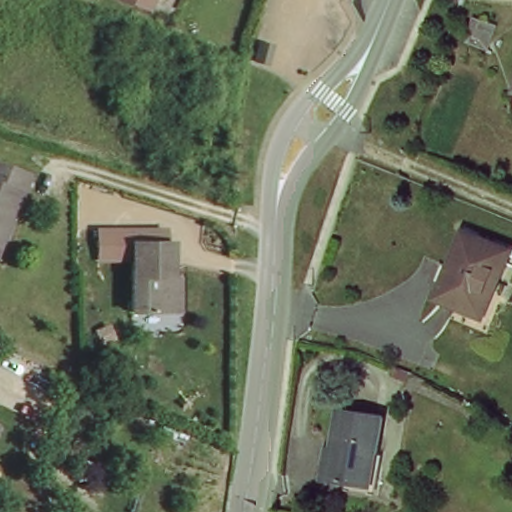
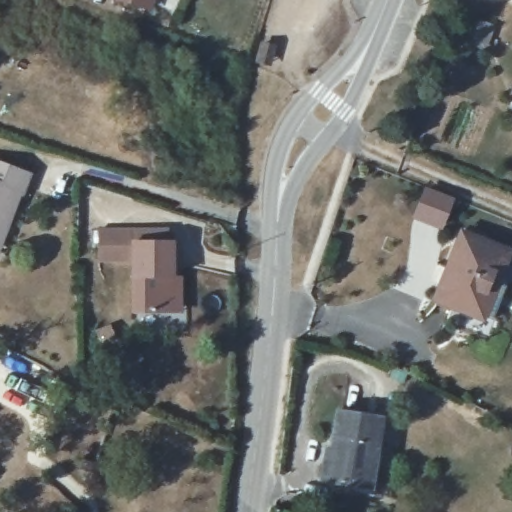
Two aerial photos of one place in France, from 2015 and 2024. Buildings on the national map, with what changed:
unchanged [(153,9),(121,0),(156,0),(153,9)]
unchanged [(482,21),(476,38),(465,34),(470,17),(482,21)]
unchanged [(30,166),(25,185),(19,184),(0,242),(0,157),(30,166)]
new [(427,190),(453,200),(443,226),(417,216),(427,190)]
unchanged [(500,278),(492,275),(477,312),(438,297),(464,234),(508,249),(500,278)]
unchanged [(183,310),(174,310),(135,310),(135,237),(174,236),(174,276),(184,276),(183,310)]
unchanged [(402,385),(404,372),(417,374),(414,388),(402,385)]
unchanged [(372,488),(321,478),(324,455),(336,458),(343,413),(383,421),(372,488)]

